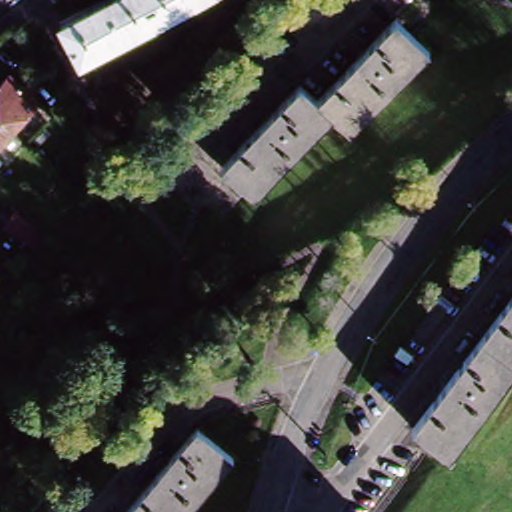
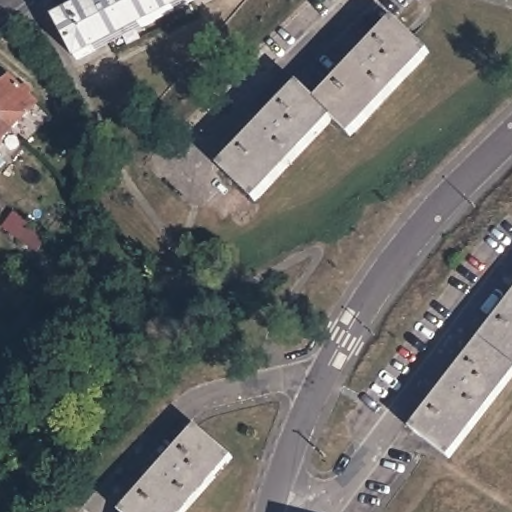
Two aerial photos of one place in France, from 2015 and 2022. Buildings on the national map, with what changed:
unchanged [(195,0),(76,60),(56,23),(101,0),(195,0)]
unchanged [(394,20),(398,24),(428,53),(348,131),(333,117),(314,99),(394,20)]
unchanged [(7,78),(38,105),(9,135),(0,127),(0,85),(7,78)]
unchanged [(253,196),(220,164),(298,84),(314,99),(333,117),(253,196)]
unchanged [(9,135),(0,145),(0,127),(9,135)]
unchanged [(10,217),(44,241),(34,254),(0,230),(10,217)]
unchanged [(512,376),(448,459),(425,443),(410,432),(512,299),(512,376)]
unchanged [(193,429),(195,427),(217,445),(231,457),(222,468),(202,492),(186,512),(123,512),(193,429)]

